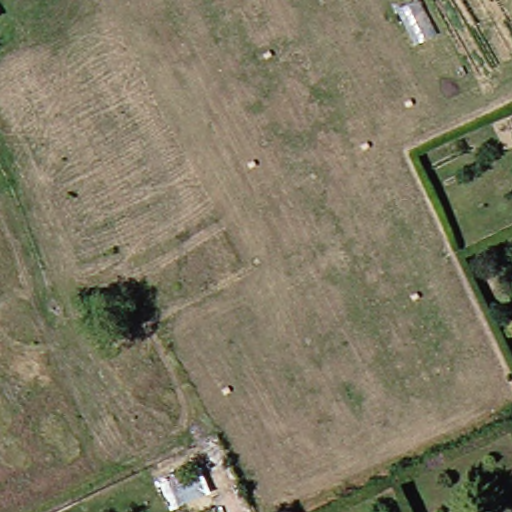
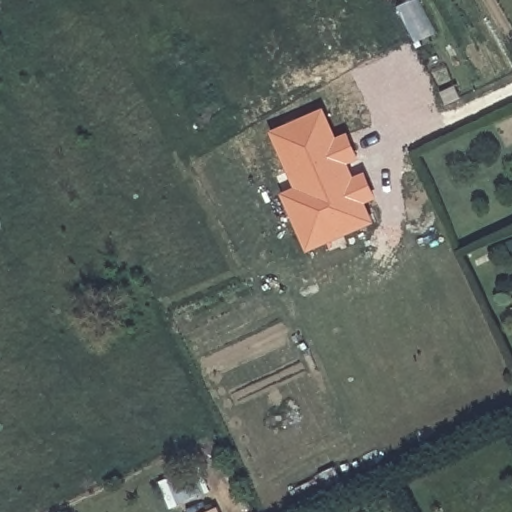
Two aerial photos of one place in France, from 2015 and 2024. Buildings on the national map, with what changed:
new [(282,192),(295,187),(270,130),(325,107),(338,137),(348,132),(360,159),(349,163),(355,176),(365,171),(377,199),(366,202),(375,222),(307,252),(282,192)]

